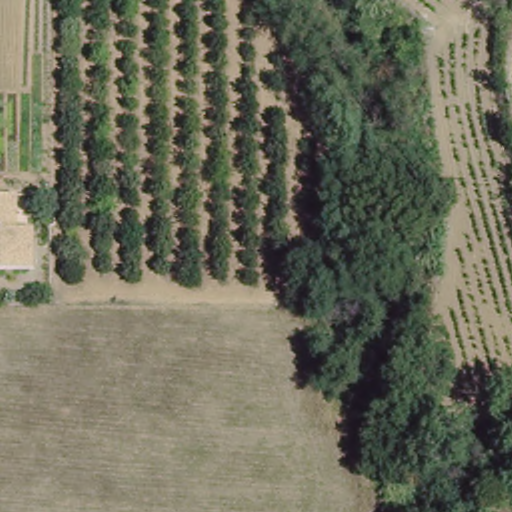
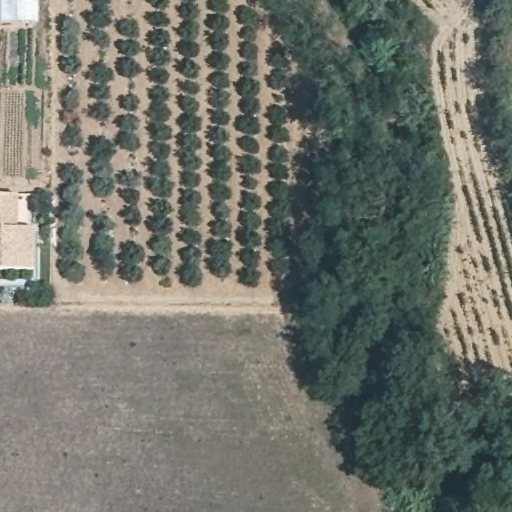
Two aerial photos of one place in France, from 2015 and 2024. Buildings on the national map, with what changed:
new [(37,21),(0,21),(0,0),(37,0),(37,21)]
unchanged [(11,190),(19,190),(18,223),(35,223),(35,231),(35,265),(0,265),(0,190),(11,190)]

